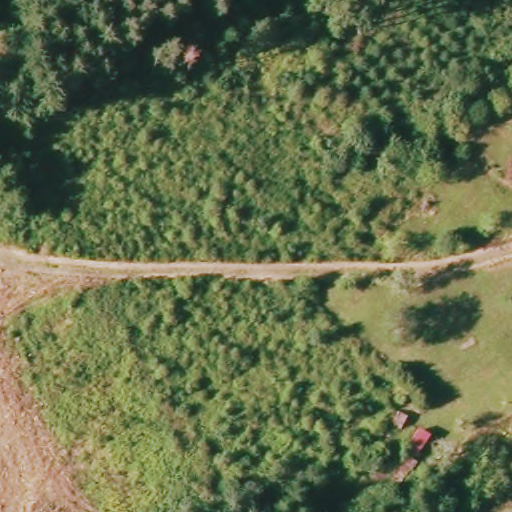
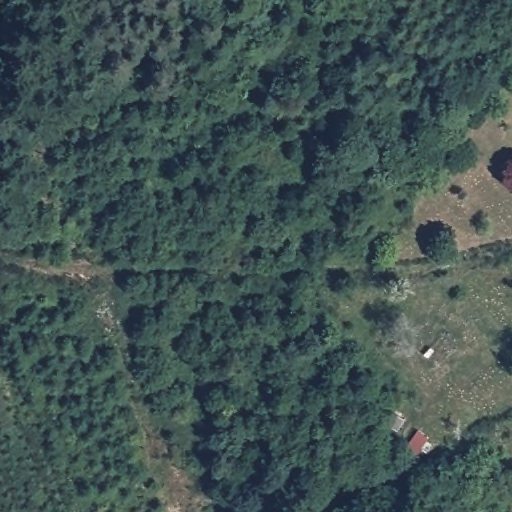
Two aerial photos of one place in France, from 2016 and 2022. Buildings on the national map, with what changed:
unchanged [(410,452),(423,428),(436,435),(426,457),(410,452)]

